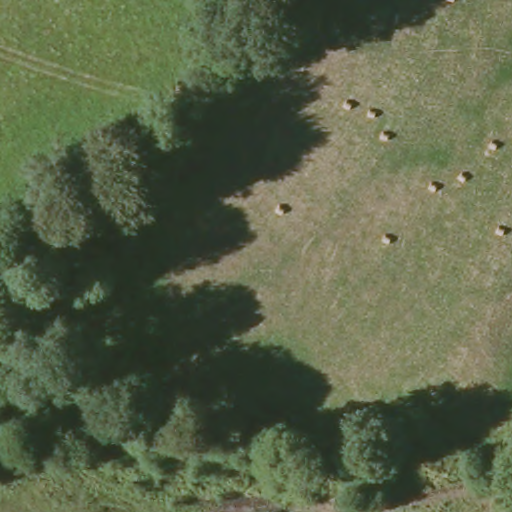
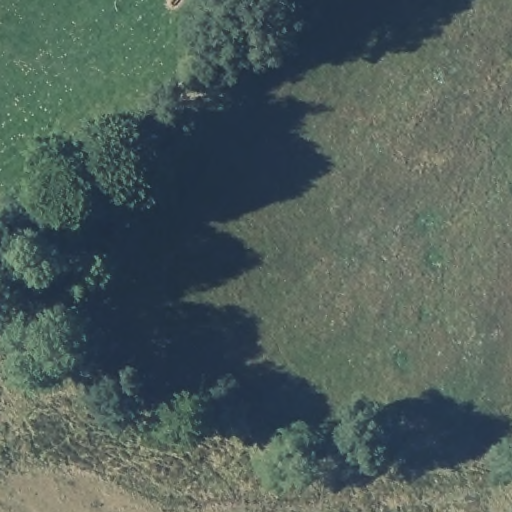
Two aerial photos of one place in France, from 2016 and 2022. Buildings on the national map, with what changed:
[]

